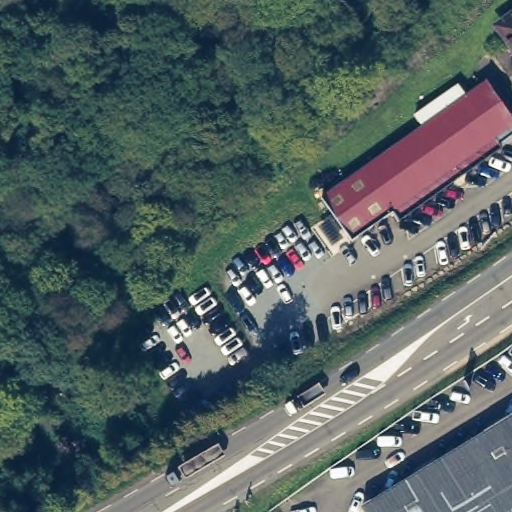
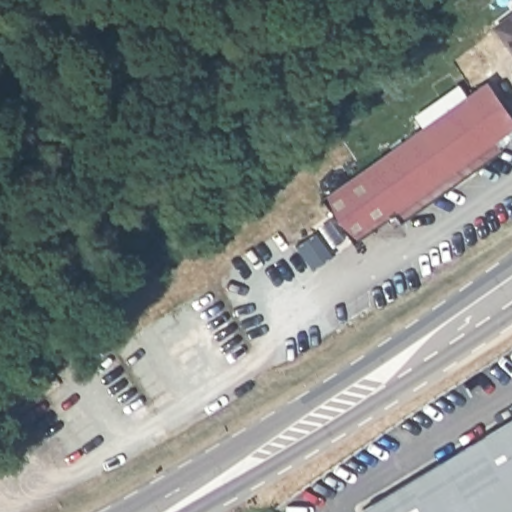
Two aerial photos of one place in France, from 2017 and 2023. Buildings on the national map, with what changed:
unchanged [(512,38),(500,20),(512,11),(512,38)]
unchanged [(457,85),(465,96),(485,84),(512,124),(512,126),(492,140),(499,149),(396,219),(389,211),(349,238),(322,194),(363,166),(422,126),(415,114),(457,85)]
unchanged [(512,417),(512,512),(366,512),(365,510),(512,417)]

